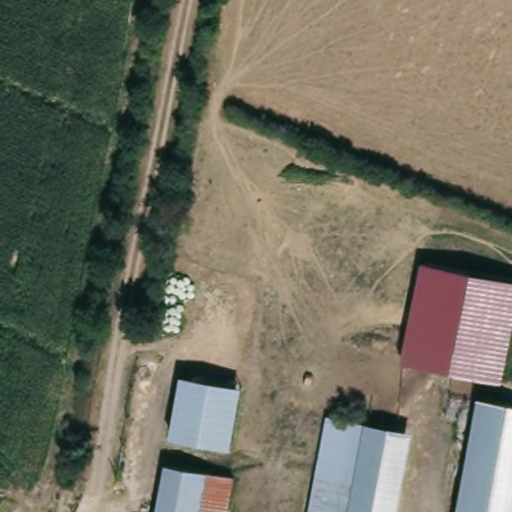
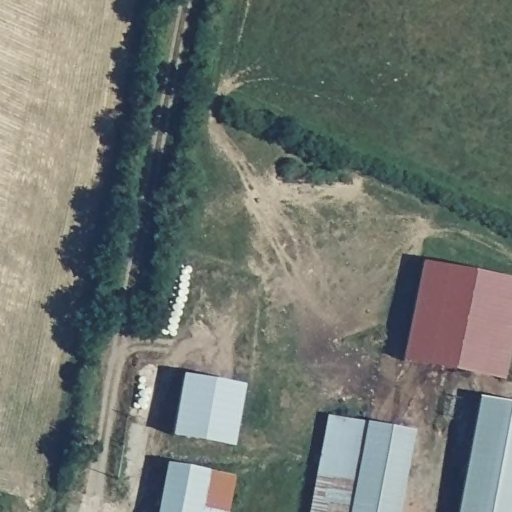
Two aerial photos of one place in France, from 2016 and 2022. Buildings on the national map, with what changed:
unchanged [(512,277),(512,341),(504,380),(402,361),(424,261),(512,277)]
unchanged [(230,453),(172,438),(186,376),(244,389),(230,453)]
unchanged [(476,512),(498,406),(512,409),(512,512),(476,512)]
unchanged [(407,431),(389,512),(307,512),(327,414),(407,431)]
unchanged [(235,484),(228,512),(156,512),(167,467),(235,484)]

